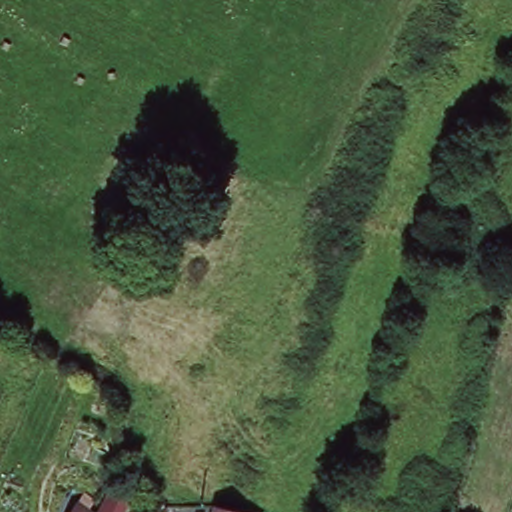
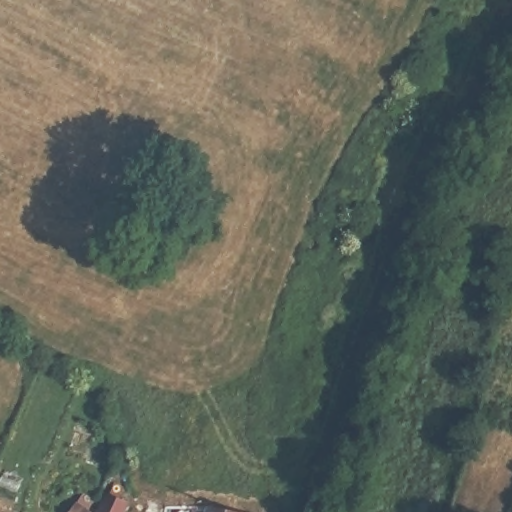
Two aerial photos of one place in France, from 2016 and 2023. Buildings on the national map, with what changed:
unchanged [(93,494),(99,496),(103,497),(114,502),(112,507),(117,512),(83,512),(93,494)]
unchanged [(248,512),(209,512),(212,498),(240,508),(248,512)]

